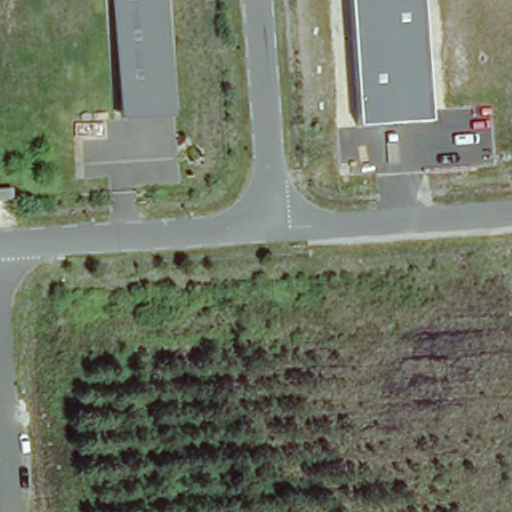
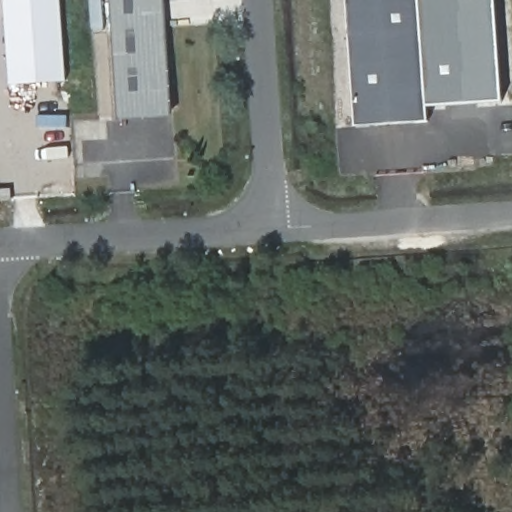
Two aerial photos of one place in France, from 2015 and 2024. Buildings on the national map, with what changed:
new [(11,84),(5,0),(58,0),(65,79),(11,84)]
unchanged [(124,121),(112,0),(164,0),(173,117),(124,121)]
unchanged [(432,123),(357,127),(350,0),(422,0),(431,106),(432,123)]
new [(431,106),(422,0),(494,0),(502,100),(431,106)]

